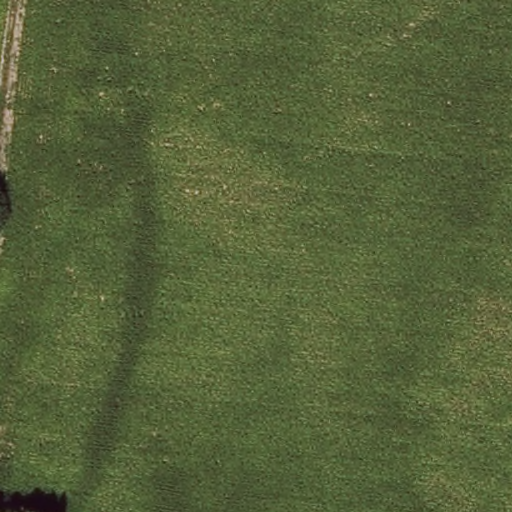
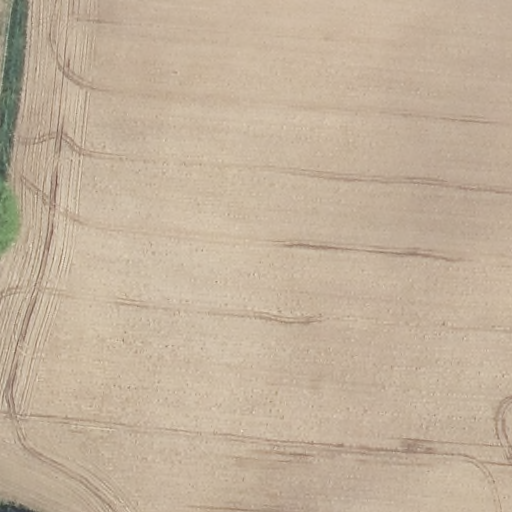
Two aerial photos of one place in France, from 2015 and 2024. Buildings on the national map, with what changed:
[]

